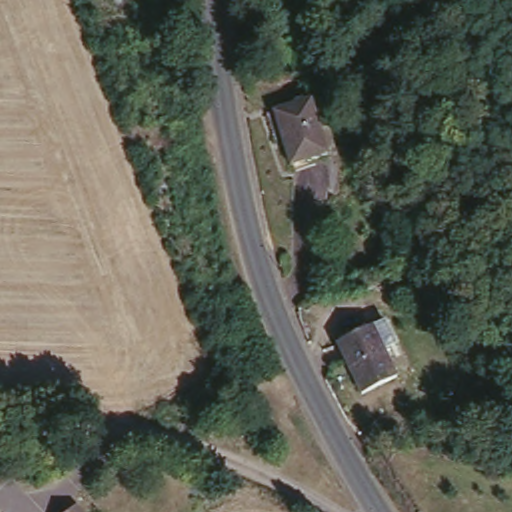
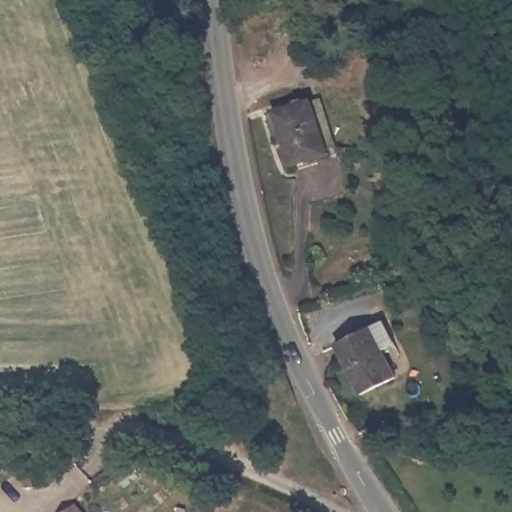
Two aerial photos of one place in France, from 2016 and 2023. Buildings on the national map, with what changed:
unchanged [(270,109),(308,95),(312,105),(328,149),(290,163),(274,120),(270,109)]
unchanged [(376,352),(389,381),(355,397),(337,355),(333,345),(379,325),(386,338),(389,347),(376,352)]
unchanged [(83,512),(66,512),(76,504),(83,512)]

